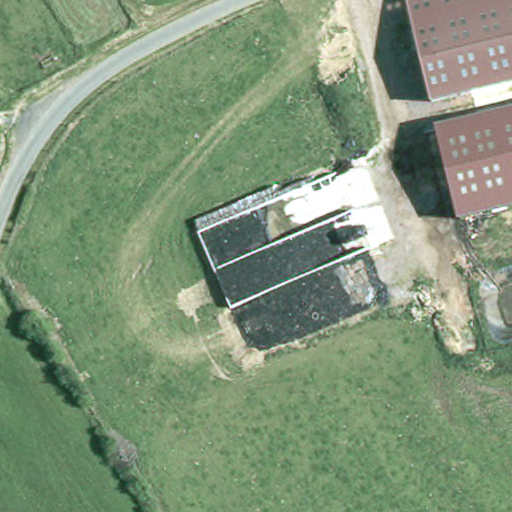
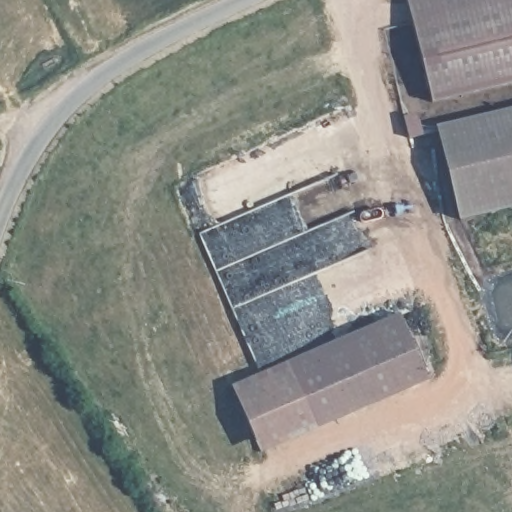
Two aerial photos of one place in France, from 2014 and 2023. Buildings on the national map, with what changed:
unchanged [(431,103),(407,0),(512,0),(512,84),(431,103)]
unchanged [(512,107),(512,209),(456,222),(436,124),(512,107)]
new [(230,387),(400,314),(429,381),(260,454),(230,387)]

